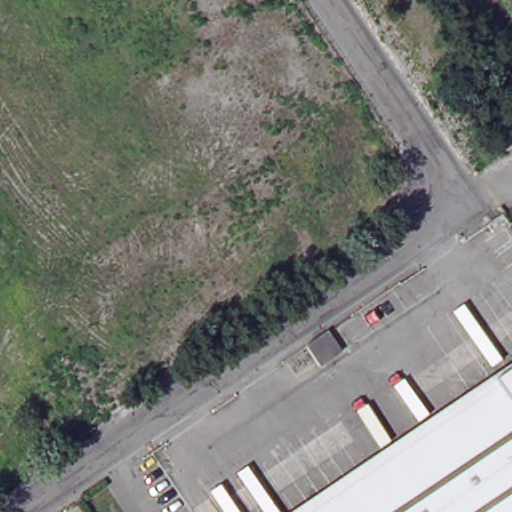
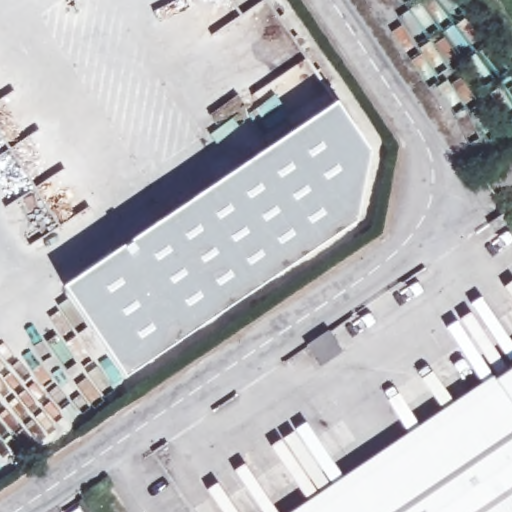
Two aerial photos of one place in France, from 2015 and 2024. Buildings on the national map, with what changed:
new [(421,51),(419,49),(431,41),(447,64),(434,72),(436,74),(425,82),(409,59),(421,51)]
new [(59,309),(57,306),(68,298),(60,285),(259,150),(337,100),(371,150),(357,221),(242,300),(123,379),(83,320),(61,336),(48,317),(59,309)]
unchanged [(329,329),(344,350),(323,365),(308,344),(329,329)]
unchanged [(503,387),(499,381),(512,372),(512,512),(319,512),(503,387)]
unchanged [(503,387),(319,512),(296,512),(496,377),(499,381),(503,387)]

